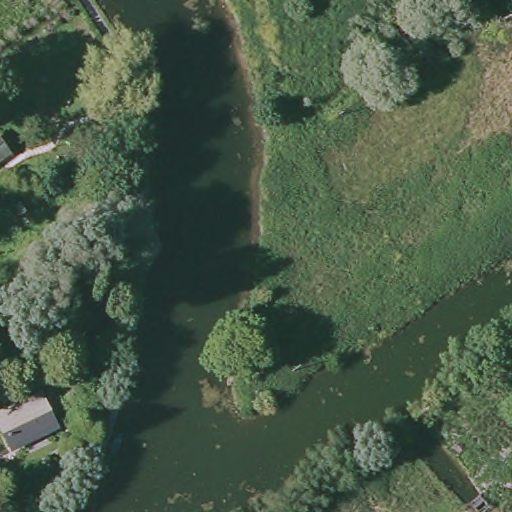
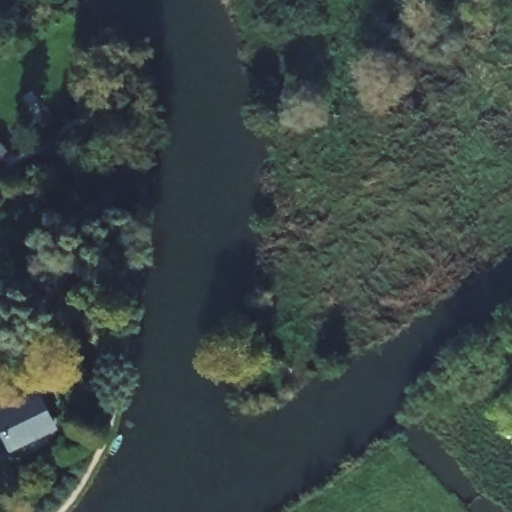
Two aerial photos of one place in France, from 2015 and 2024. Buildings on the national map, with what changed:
unchanged [(13,155),(3,162),(0,164),(0,138),(13,155)]
unchanged [(46,201),(25,216),(14,198),(34,185),(46,201)]
unchanged [(0,423),(0,416),(40,396),(56,430),(15,452),(0,423)]

